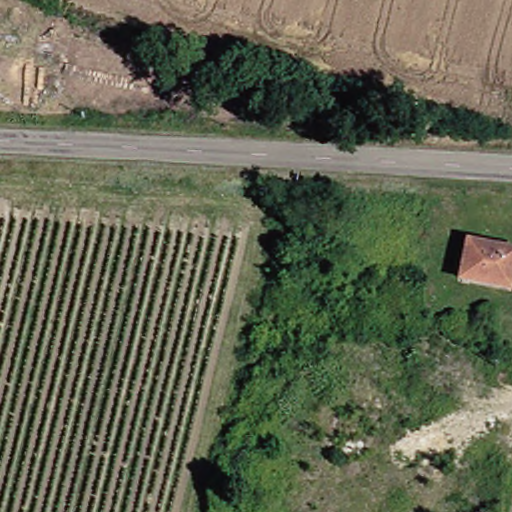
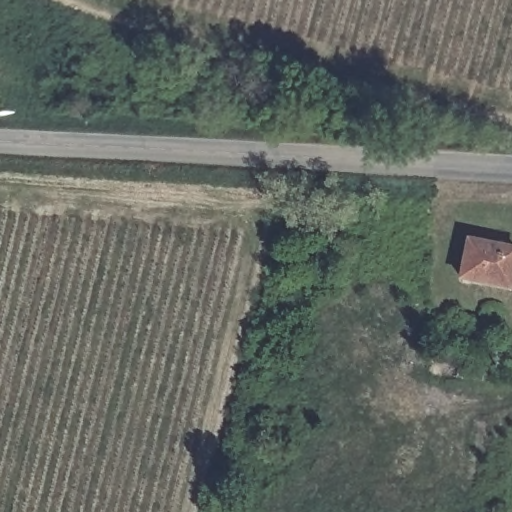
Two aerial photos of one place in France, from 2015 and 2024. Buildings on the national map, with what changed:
unchanged [(512,282),(468,275),(475,236),(512,242),(512,282)]

